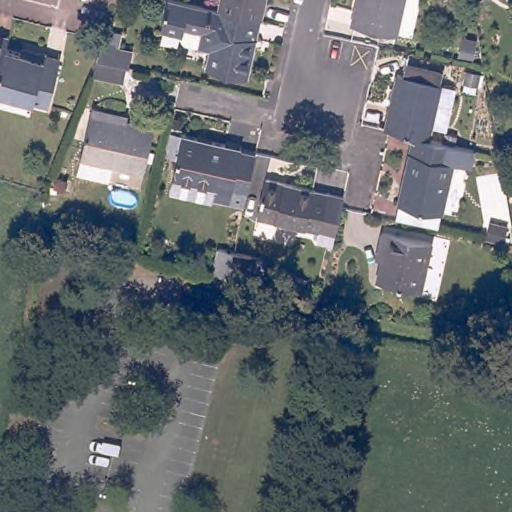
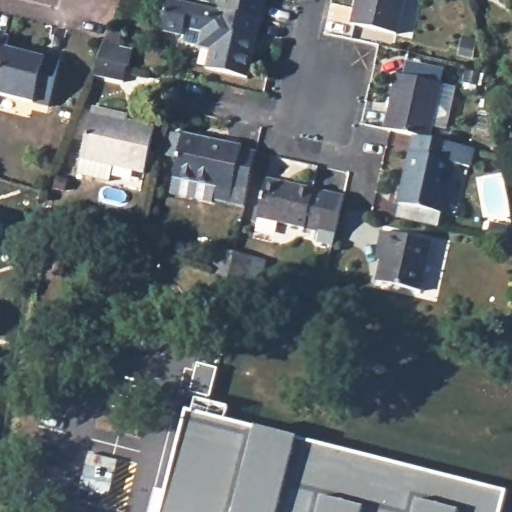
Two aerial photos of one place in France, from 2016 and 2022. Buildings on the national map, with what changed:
unchanged [(228,0),(270,0),(266,23),(226,14),(228,0)]
unchanged [(391,34),(347,23),(352,0),(399,0),(391,34)]
unchanged [(226,14),(266,23),(254,83),(212,75),(214,55),(204,52),(206,37),(189,32),(188,40),(167,36),(172,2),(226,14)]
unchanged [(6,47),(0,70),(0,35),(8,37),(6,47)]
unchanged [(92,77),(96,61),(103,44),(104,41),(115,43),(114,47),(129,51),(126,67),(122,83),(92,77)]
unchanged [(6,47),(21,51),(22,46),(46,52),(59,56),(47,106),(0,94),(0,70),(6,47)]
unchanged [(403,76),(406,63),(435,69),(432,82),(441,84),(429,139),(413,135),(388,129),(385,129),(397,75),(403,76)]
unchanged [(144,172),(113,165),(109,181),(79,174),(93,106),(108,109),(131,114),(130,120),(154,126),(144,172)]
unchanged [(184,128),(242,142),(242,145),(256,147),(253,160),(245,198),(231,195),(230,197),(213,192),(212,197),(170,187),(184,128)]
unchanged [(428,226),(394,217),(398,202),(413,135),(429,139),(473,149),(469,167),(453,163),(443,212),(439,228),(428,226)]
unchanged [(242,207),(245,198),(253,160),(269,164),(267,173),(285,177),(284,179),(328,190),(320,226),(242,207)]
unchanged [(432,242),(422,290),(377,280),(381,259),(375,257),(378,248),(382,231),(432,242)]
unchanged [(245,282),(228,277),(212,272),(218,246),(234,250),(251,255),(245,282)]
new [(191,411),(194,401),(197,396),(188,393),(197,362),(218,367),(209,403),(228,408),(225,421),(507,493),(502,512),(158,512),(184,410),(191,411)]

